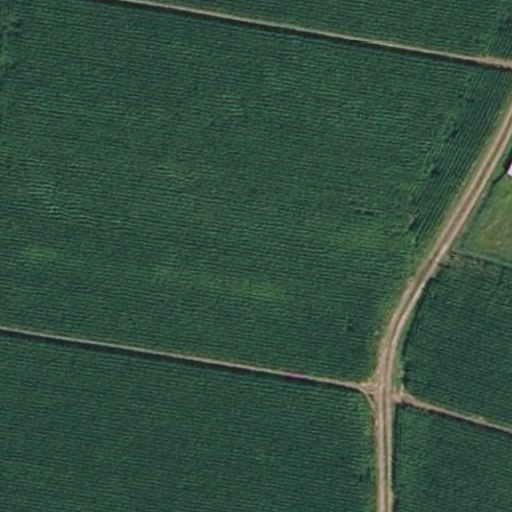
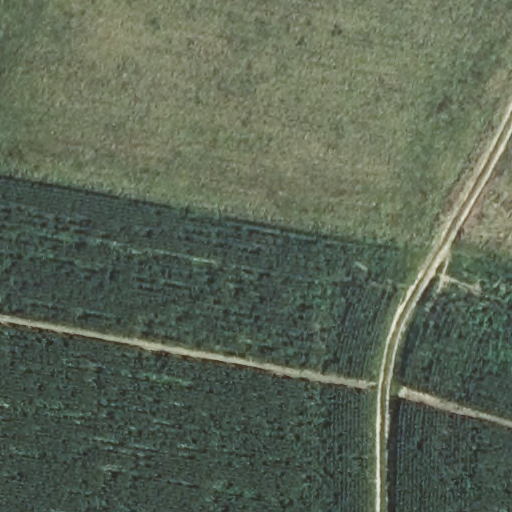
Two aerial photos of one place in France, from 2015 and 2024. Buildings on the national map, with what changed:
unchanged [(512,174),(506,172),(512,158),(512,174)]

